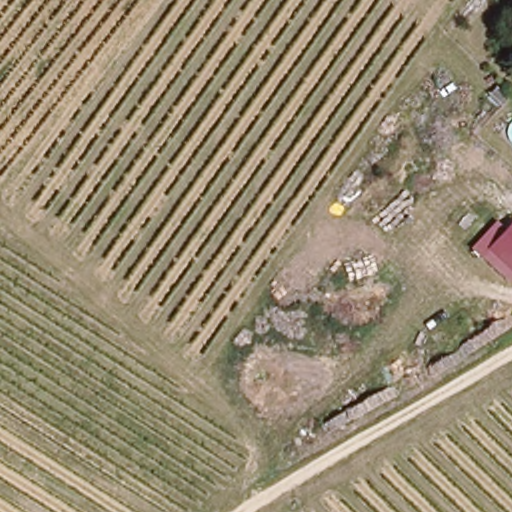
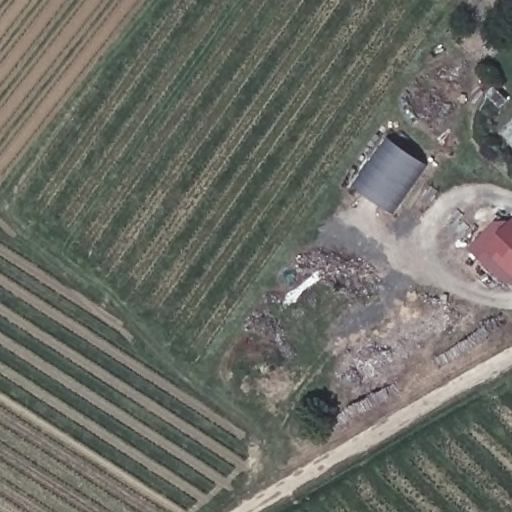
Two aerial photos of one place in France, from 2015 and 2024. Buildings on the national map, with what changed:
new [(389,212),(355,187),(390,139),(422,162),(389,212)]
unchanged [(512,224),(512,275),(486,250),(512,224)]

